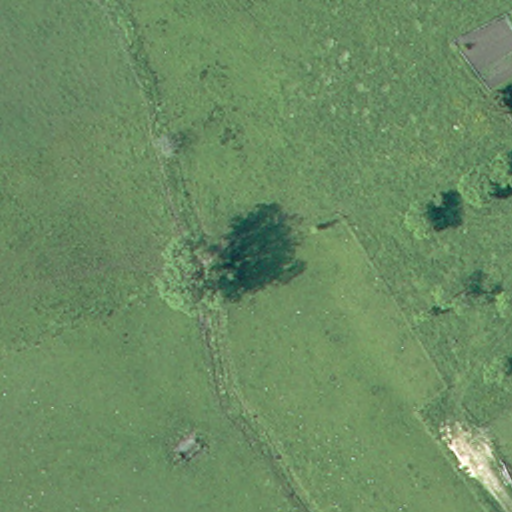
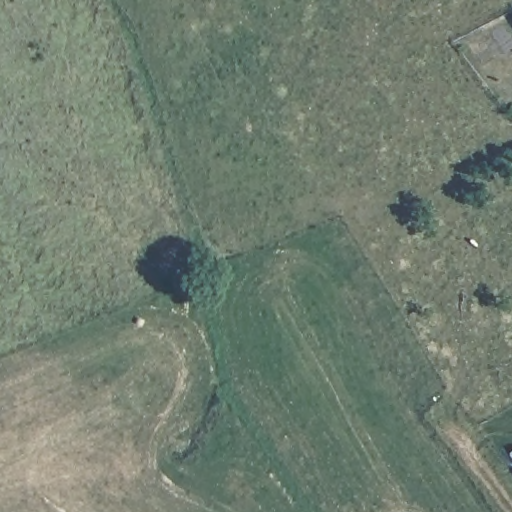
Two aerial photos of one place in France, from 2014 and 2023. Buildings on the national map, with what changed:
[]

